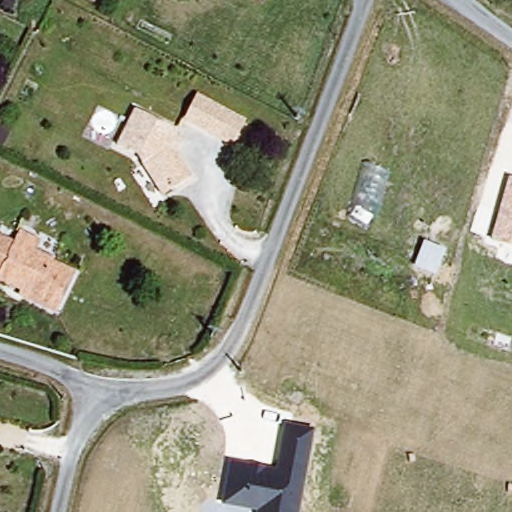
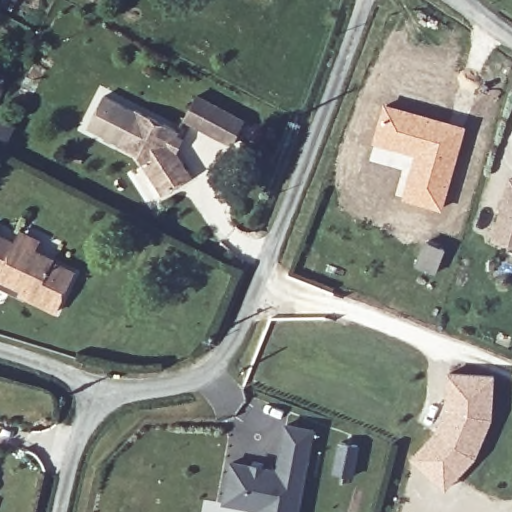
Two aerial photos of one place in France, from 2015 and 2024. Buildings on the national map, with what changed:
unchanged [(243,120),(233,142),(186,119),(197,97),(243,120)]
new [(382,102),(467,126),(442,212),(400,200),(412,157),(401,155),(399,162),(400,162),(399,169),(368,160),(382,102)]
unchanged [(163,194),(143,158),(115,142),(132,109),(176,130),(183,140),(173,150),(192,178),(163,194)]
unchanged [(512,245),(491,240),(507,177),(512,178),(512,245)]
unchanged [(16,297),(18,292),(0,282),(0,273),(19,230),(39,239),(36,250),(52,258),(52,262),(73,272),(53,312),(16,297)]
new [(14,242),(0,273),(0,237),(14,242)]
new [(421,241),(445,250),(435,276),(411,266),(421,241)]
new [(445,412),(448,377),(492,382),(488,425),(471,458),(452,477),(442,488),(411,457),(435,432),(445,412)]
unchanged [(299,512),(255,512),(256,508),(222,502),(230,460),(275,467),(283,423),(315,430),(299,512)]
new [(338,443),(356,448),(348,480),(331,475),(338,443)]

